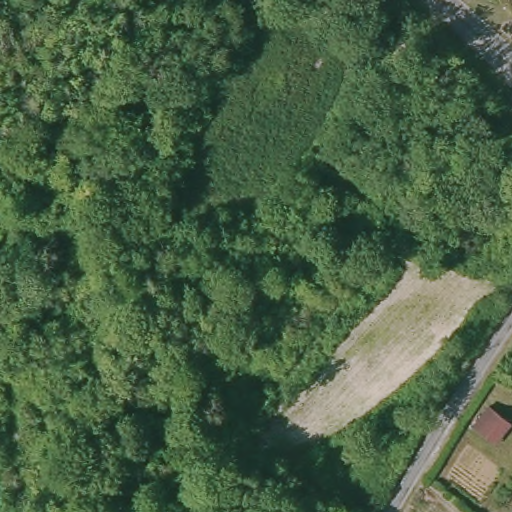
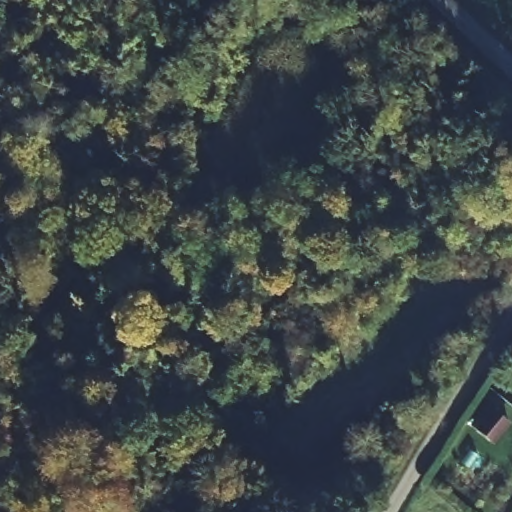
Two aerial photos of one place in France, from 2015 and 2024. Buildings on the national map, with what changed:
unchanged [(490,388),(507,405),(489,426),(471,409),(490,388)]

